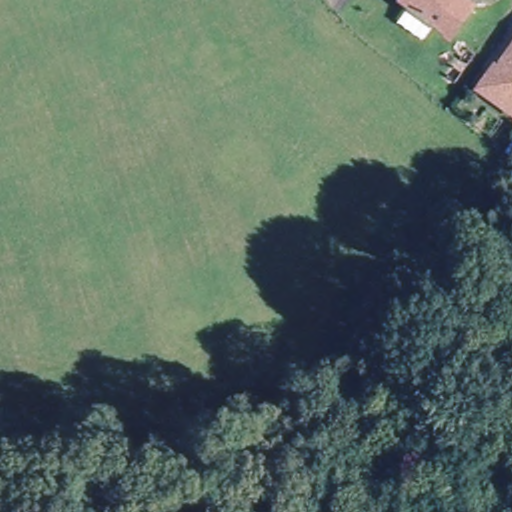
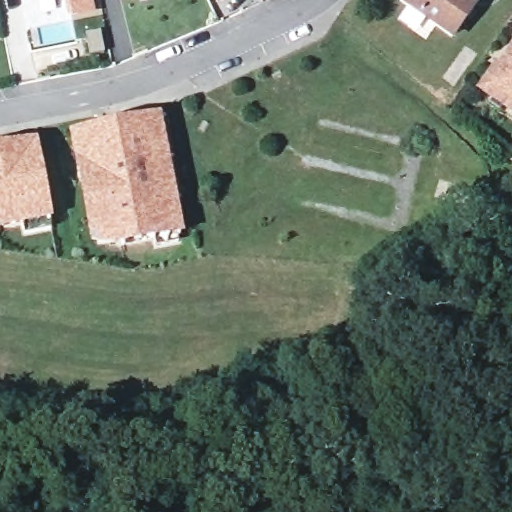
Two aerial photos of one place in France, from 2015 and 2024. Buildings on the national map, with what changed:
new [(21,0),(33,0),(22,3),(21,0)]
new [(66,16),(63,0),(93,0),(95,11),(66,16)]
new [(118,0),(120,0),(118,1),(118,0)]
new [(216,0),(225,0),(217,4),(216,0)]
unchanged [(452,38),(401,1),(402,0),(467,0),(475,5),(452,38)]
unchanged [(497,67),(500,69),(512,51),(512,111),(481,89),(497,67)]
new [(158,116),(182,235),(92,248),(69,131),(158,116)]
new [(3,230),(0,229),(0,144),(36,137),(52,220),(3,230)]

